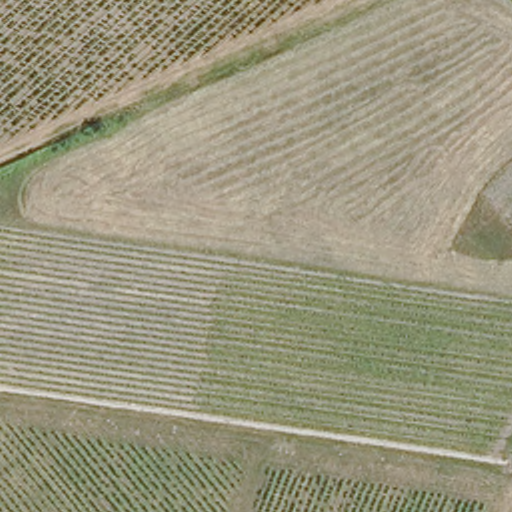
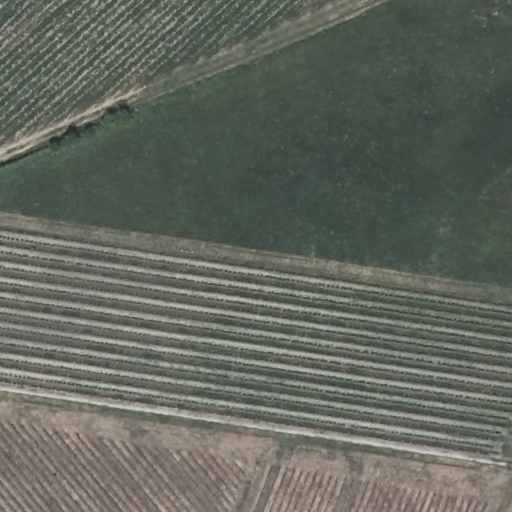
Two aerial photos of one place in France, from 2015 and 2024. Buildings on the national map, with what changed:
[]

